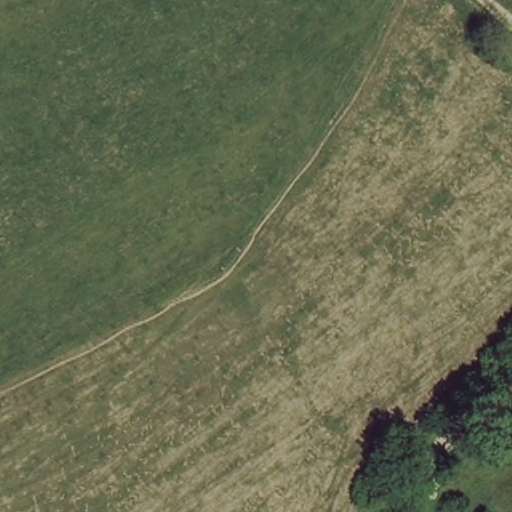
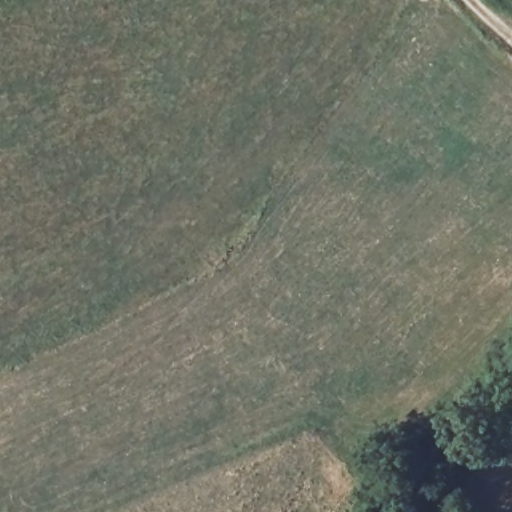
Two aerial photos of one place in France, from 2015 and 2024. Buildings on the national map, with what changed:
[]

